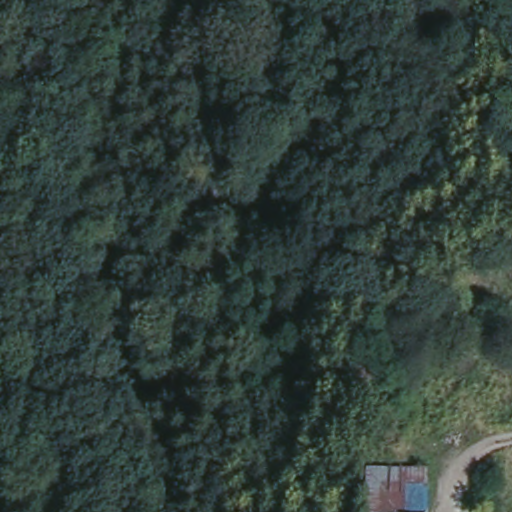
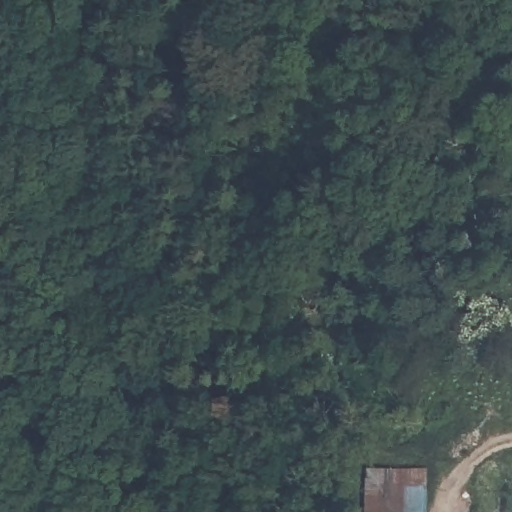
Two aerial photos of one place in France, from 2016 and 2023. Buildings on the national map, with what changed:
unchanged [(487,127),(512,130),(512,139),(512,164),(475,162),(476,136),(485,136),(487,127)]
unchanged [(360,512),(366,470),(385,472),(382,512),(360,512)]
unchanged [(430,476),(428,512),(382,512),(385,472),(430,476)]

